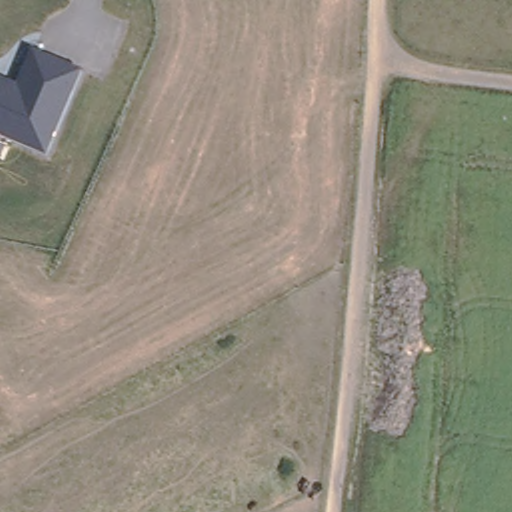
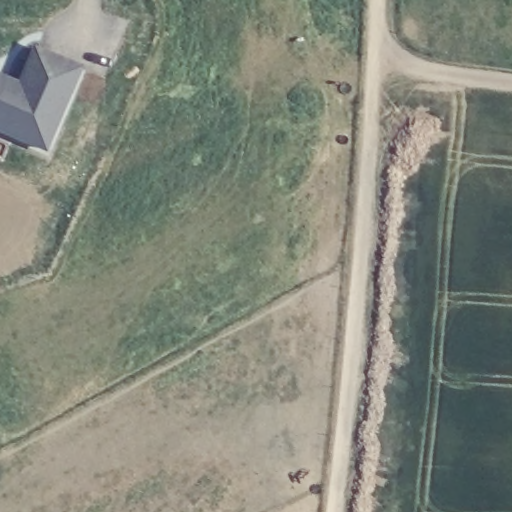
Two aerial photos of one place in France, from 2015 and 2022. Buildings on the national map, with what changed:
unchanged [(46,152),(0,132),(0,89),(2,90),(7,81),(20,87),(32,57),(42,54),(74,67),(77,76),(46,152)]

